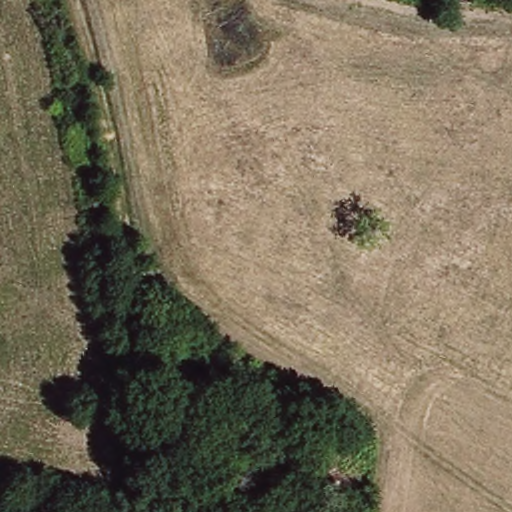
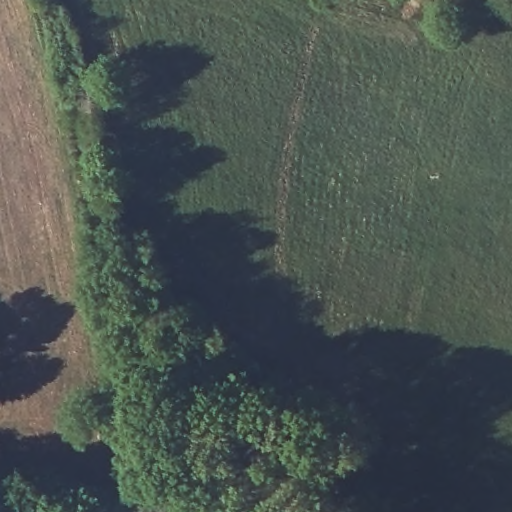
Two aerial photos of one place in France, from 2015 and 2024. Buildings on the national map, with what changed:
[]

